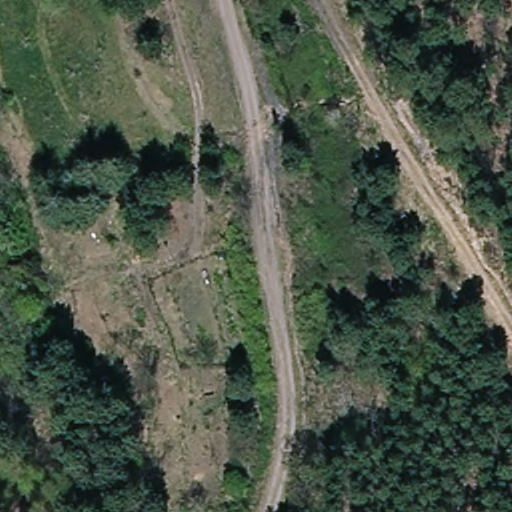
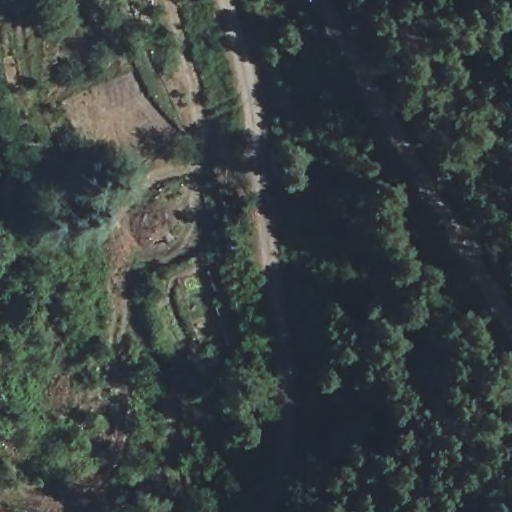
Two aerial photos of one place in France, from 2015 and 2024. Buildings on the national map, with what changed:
[]

